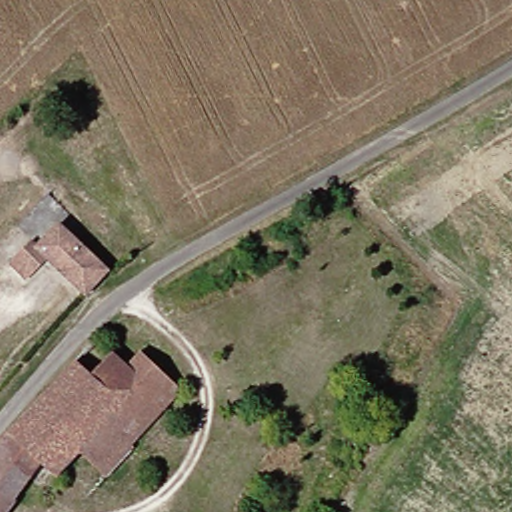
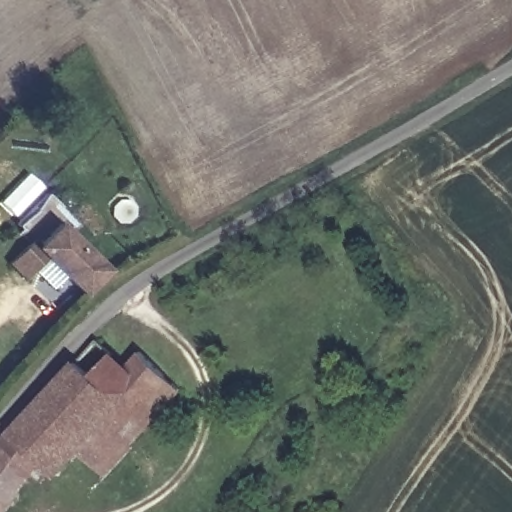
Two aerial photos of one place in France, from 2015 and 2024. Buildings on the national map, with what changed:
unchanged [(23,278),(7,261),(37,229),(44,235),(55,223),(106,270),(83,292),(52,264),(37,280),(29,272),(23,278)]
unchanged [(122,372),(139,360),(177,399),(120,453),(96,430),(47,478),(5,435),(6,433),(96,345),(122,372)]
unchanged [(96,430),(120,453),(123,457),(76,504),(47,478),(96,430)]
unchanged [(47,478),(21,506),(5,495),(0,502),(0,439),(5,435),(47,478)]

